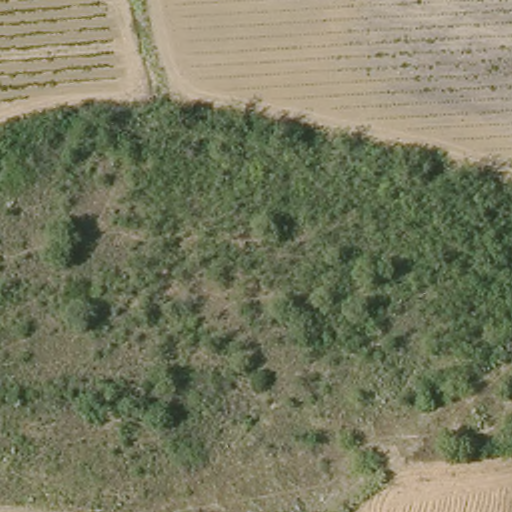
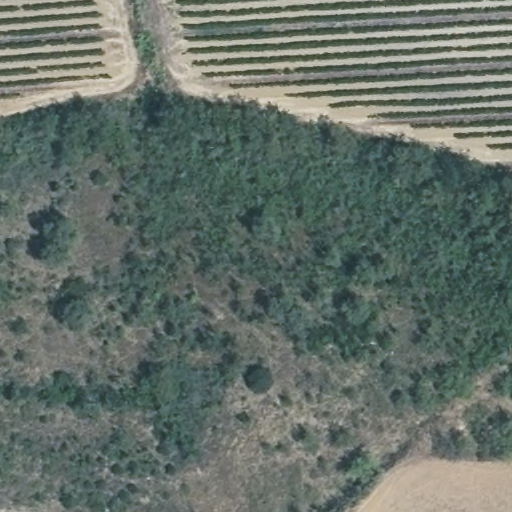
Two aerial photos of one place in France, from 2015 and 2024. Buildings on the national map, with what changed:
[]

